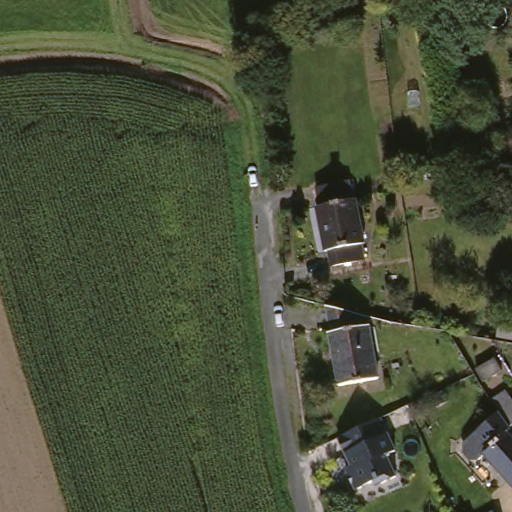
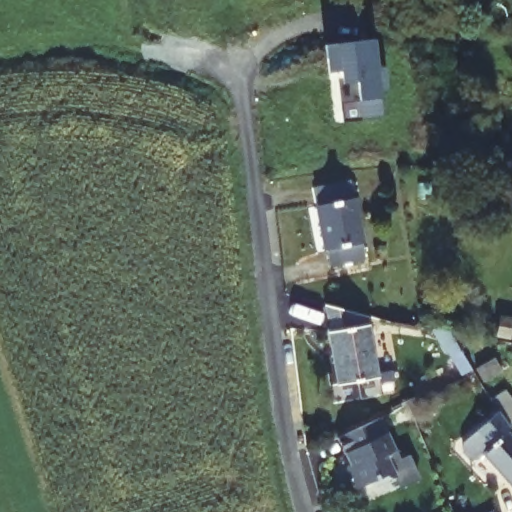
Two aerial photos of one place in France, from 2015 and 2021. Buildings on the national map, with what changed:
new [(370,27),(377,75),(384,74),(387,95),(380,96),(384,123),(343,129),(340,109),(358,106),(356,89),(333,80),(331,66),(326,67),(321,34),(370,27)]
unchanged [(358,191),(370,234),(365,235),(368,250),(336,257),(332,242),(330,243),(319,198),(358,191)]
unchanged [(375,312),(386,375),(347,383),(337,327),(341,327),(337,304),(375,312)]
unchanged [(512,318),(512,337),(510,336),(512,318)]
unchanged [(386,416),(402,449),(393,453),(403,474),(388,481),(381,479),(361,488),(351,466),(358,463),(353,452),(350,453),(343,437),(358,430),(386,416)]
unchanged [(460,449),(494,416),(512,427),(512,432),(489,455),(477,463),(460,449)]
unchanged [(512,480),(489,455),(512,432),(512,480)]

